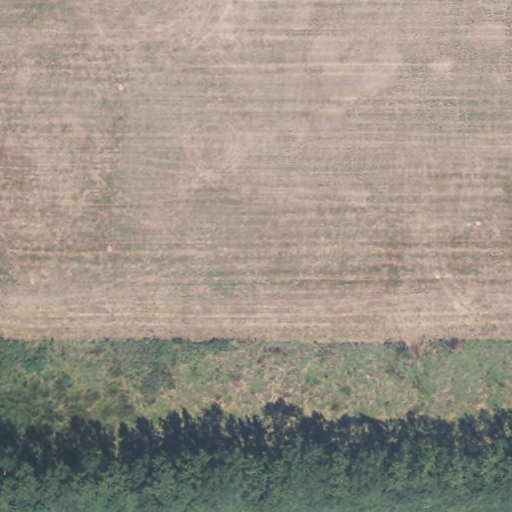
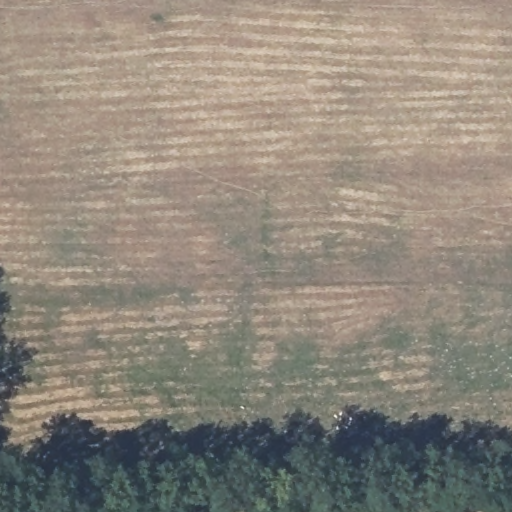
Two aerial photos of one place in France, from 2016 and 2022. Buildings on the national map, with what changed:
[]

